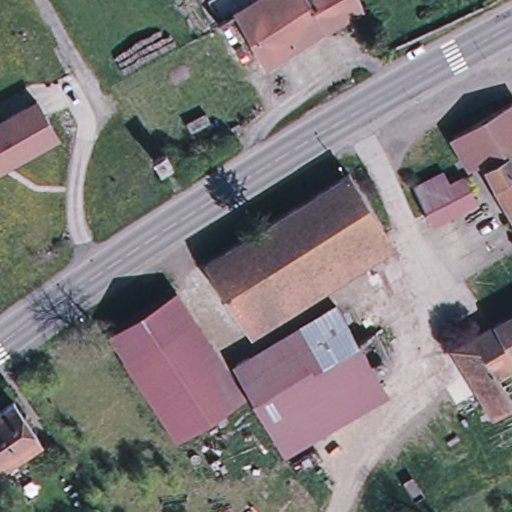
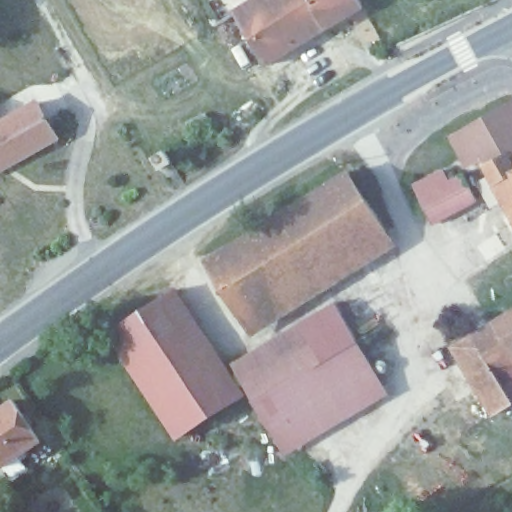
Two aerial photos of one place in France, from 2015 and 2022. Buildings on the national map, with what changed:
unchanged [(309,0),(325,30),(310,39),(265,67),(232,14),(255,0),(309,0)]
unchanged [(325,30),(309,0),(357,0),(361,7),(325,30)]
unchanged [(512,102),(512,166),(490,179),(480,161),(468,167),(450,139),(512,102)]
unchanged [(57,139),(0,171),(0,125),(37,104),(57,139)]
unchanged [(512,172),(512,212),(493,183),(512,172)]
unchanged [(452,175),(455,181),(461,177),(470,192),(475,200),(450,214),(444,202),(427,212),(415,190),(444,174),(447,178),(449,177),(452,175)]
unchanged [(353,179),(392,238),(337,272),(300,212),(353,179)]
unchanged [(300,212),(337,272),(247,328),(210,268),(300,212)]
unchanged [(171,297),(242,399),(187,437),(117,333),(171,297)]
unchanged [(232,367),(335,305),(357,342),(379,378),(275,439),(257,407),(232,367)]
unchanged [(512,313),(512,348),(497,322),(512,313)]
unchanged [(497,322),(512,348),(512,365),(497,374),(512,399),(512,404),(496,413),(455,347),(497,322)]
unchanged [(22,465),(23,467),(12,476),(9,472),(5,475),(2,470),(0,467),(0,412),(14,402),(42,443),(25,455),(29,459),(22,465)]

